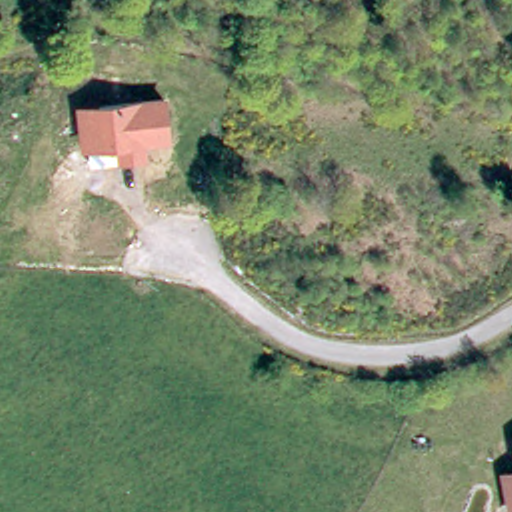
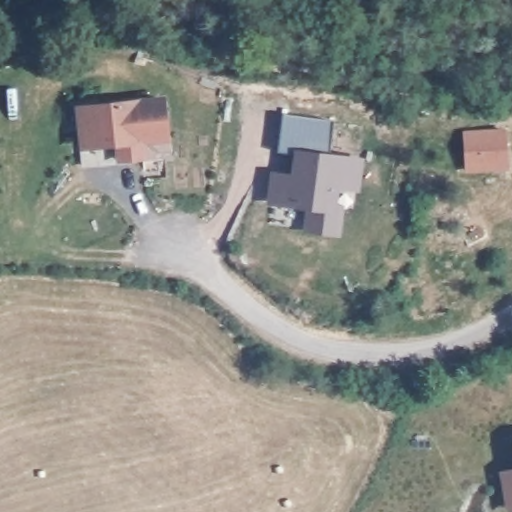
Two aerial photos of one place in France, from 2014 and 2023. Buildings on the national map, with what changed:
unchanged [(114,146),(80,150),(74,104),(166,95),(171,141),(146,143),(147,160),(118,162),(114,146)]
new [(329,152),(364,156),(361,190),(339,187),(338,204),(346,204),(343,237),(303,232),(306,208),(267,204),(271,170),(291,173),(294,152),(278,150),(282,114),(333,120),(329,152)]
new [(510,131),(512,152),(512,169),(472,172),(469,135),(510,131)]
unchanged [(499,471),(512,468),(512,512),(506,512),(499,471)]

